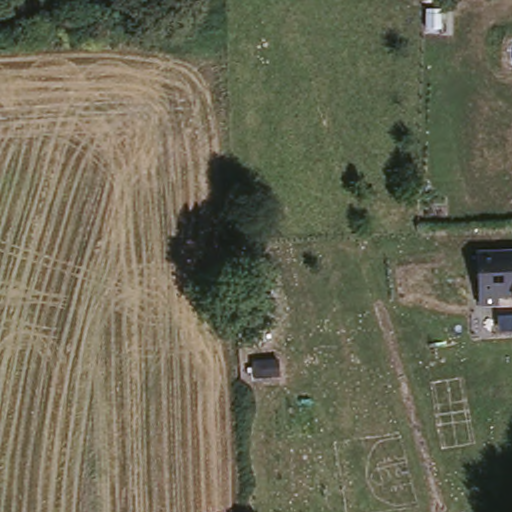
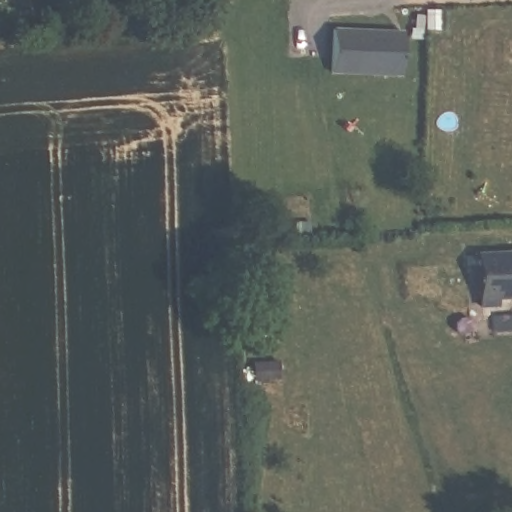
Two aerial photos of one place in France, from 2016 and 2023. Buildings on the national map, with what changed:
new [(332,30),(404,31),(404,75),(332,74),(332,30)]
unchanged [(512,291),(503,291),(502,296),(481,298),(478,251),(512,250),(512,291)]

